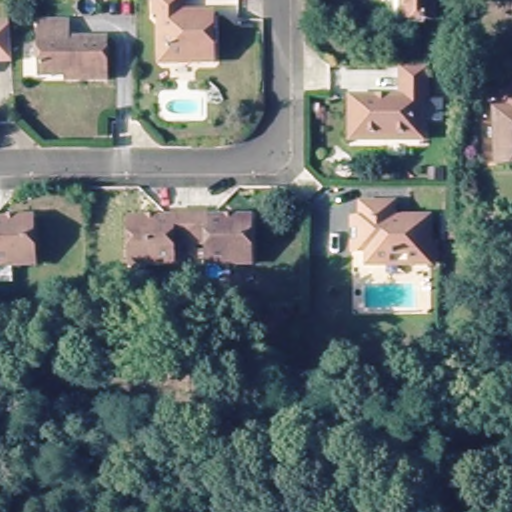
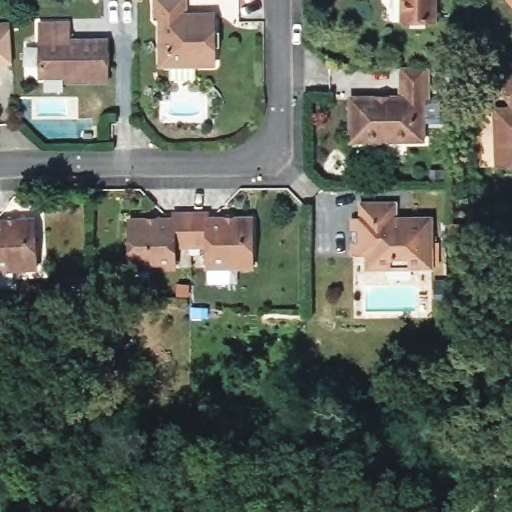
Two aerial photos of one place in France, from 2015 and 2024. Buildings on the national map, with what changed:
unchanged [(201,68),(168,69),(168,52),(160,52),(159,18),(154,18),(152,0),(187,0),(188,17),(215,16),(216,46),(217,67),(201,68)]
unchanged [(434,22),(399,21),(399,0),(434,0),(434,22)]
unchanged [(508,0),(512,0),(512,5),(508,0)]
unchanged [(15,17),(15,21),(18,49),(19,55),(0,57),(0,12),(15,11),(15,17)]
unchanged [(60,76),(42,76),(41,22),(73,22),(73,38),(112,38),(112,81),(68,81),(61,81),(60,76)]
unchanged [(386,102),(401,102),(401,68),(429,68),(429,101),(422,101),(423,142),(349,143),(348,102),(376,102),(386,102)]
unchanged [(503,81),(512,73),(512,91),(503,81)]
unchanged [(499,168),(498,109),(512,108),(512,168),(499,168)]
unchanged [(368,260),(367,245),(354,246),(354,212),(361,212),(361,197),(397,197),(397,212),(408,212),(432,212),(433,260),(414,260),(394,260),(368,260)]
unchanged [(254,263),(209,264),(208,245),(178,246),(178,265),(132,266),(131,222),(175,221),(175,214),(207,213),(207,220),(253,219),(254,263)]
unchanged [(0,263),(0,219),(36,218),(38,262),(0,263)]

